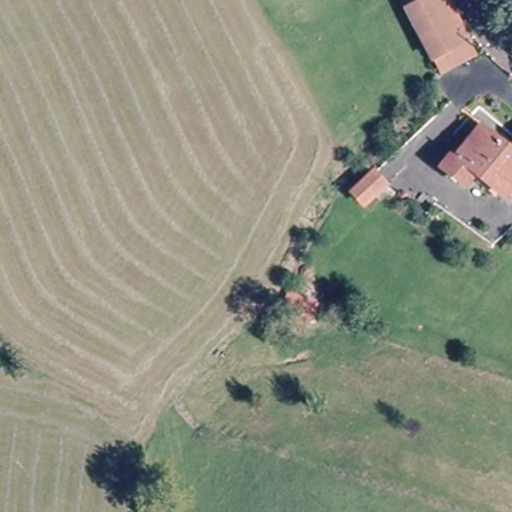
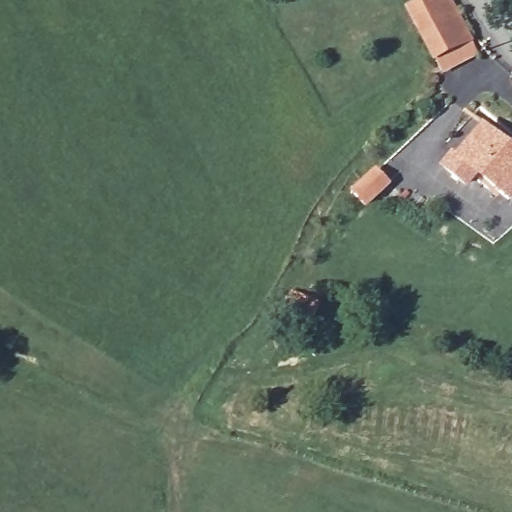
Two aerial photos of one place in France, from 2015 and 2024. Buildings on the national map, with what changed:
unchanged [(405,10),(424,0),(443,0),(464,42),(468,50),(433,68),(430,60),(405,10)]
unchanged [(477,126),(512,154),(512,191),(504,201),(472,176),(464,187),(443,171),(477,126)]
unchanged [(376,171),(389,185),(369,202),(357,189),(376,171)]
unchanged [(295,310),(300,294),(313,298),(307,314),(295,310)]

